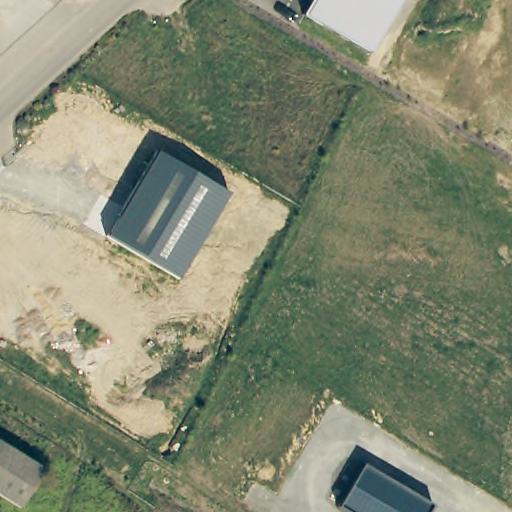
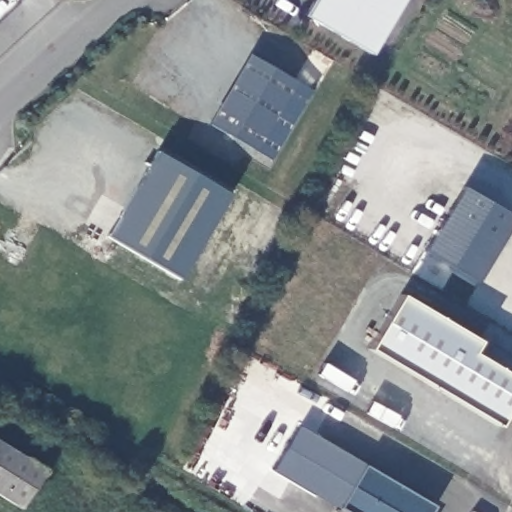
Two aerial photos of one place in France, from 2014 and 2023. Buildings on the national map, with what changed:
unchanged [(372,54),(306,15),(315,0),(403,0),(372,54)]
new [(250,54),(297,82),(255,150),(211,124),(250,54)]
new [(313,91),(272,159),(255,150),(297,82),(313,91)]
unchanged [(182,280),(109,237),(158,152),(232,194),(182,280)]
new [(425,250),(463,186),(512,214),(512,223),(480,281),(425,250)]
new [(472,353),(512,377),(512,404),(499,426),(369,349),(403,295),(479,341),(472,353)]
new [(274,469),(301,425),(365,465),(341,505),(274,469)]
unchanged [(41,465),(19,501),(0,490),(0,441),(41,465)]
unchanged [(352,512),(341,505),(365,465),(433,506),(430,512),(352,512)]

